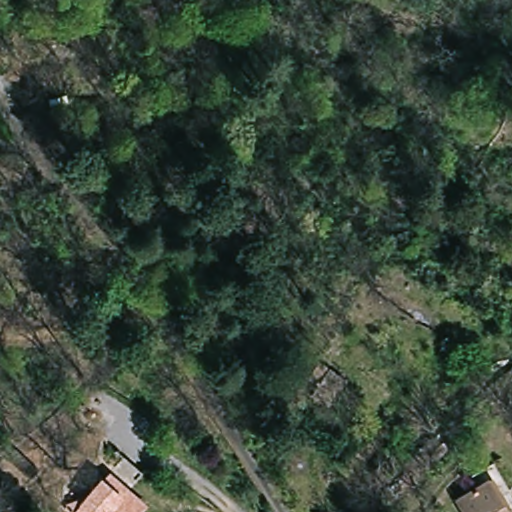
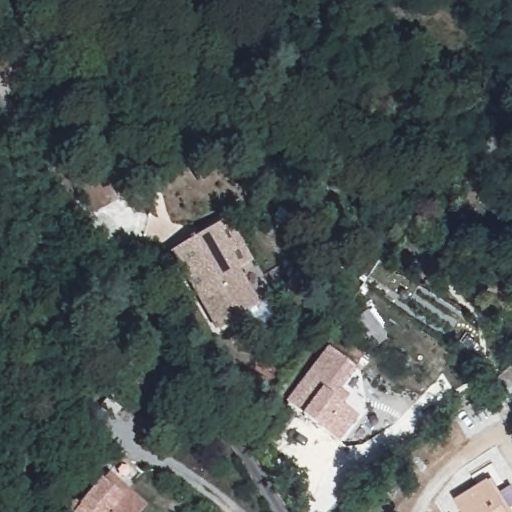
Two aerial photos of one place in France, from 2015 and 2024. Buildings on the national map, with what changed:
new [(216,331),(171,251),(214,226),(227,218),(252,262),(239,269),(260,305),(216,331)]
new [(327,347),(357,369),(340,389),(349,396),(343,404),(358,416),(339,442),(325,431),(303,414),(287,401),(327,347)]
demolished [(350,398),(331,426),(316,414),(335,387),(350,398)]
demolished [(7,485),(0,480),(0,475),(12,465),(19,475),(7,485)]
unchanged [(149,504),(142,512),(72,512),(110,469),(149,504)]
unchanged [(489,476),(509,512),(462,512),(454,499),(489,476)]

